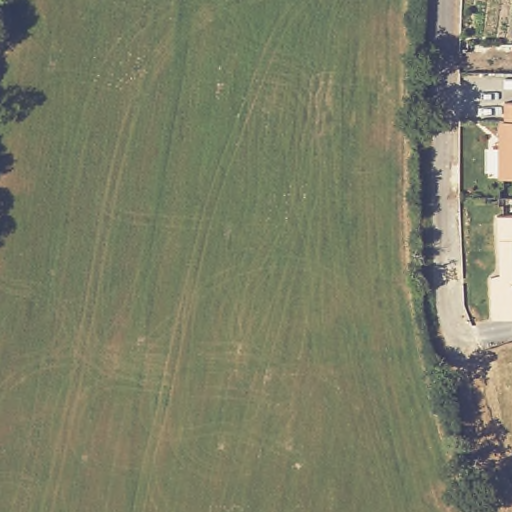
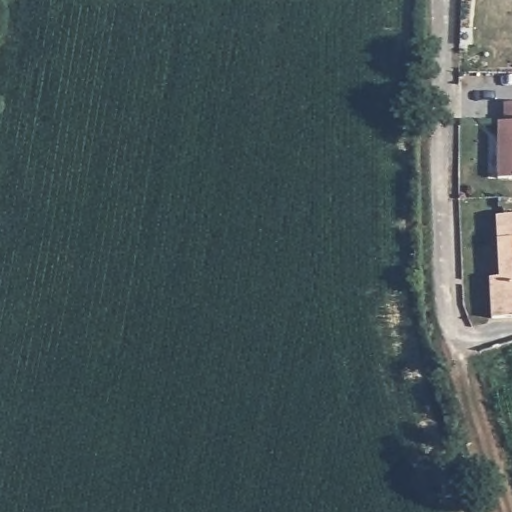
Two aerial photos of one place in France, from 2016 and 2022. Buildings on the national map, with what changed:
unchanged [(502,102),(512,102),(512,174),(496,174),(497,121),(502,118),(502,102)]
unchanged [(487,291),(493,285),(490,217),(512,216),(512,319),(487,320),(487,291)]

